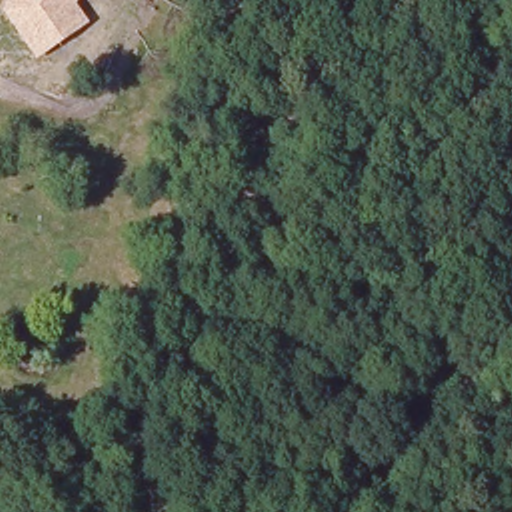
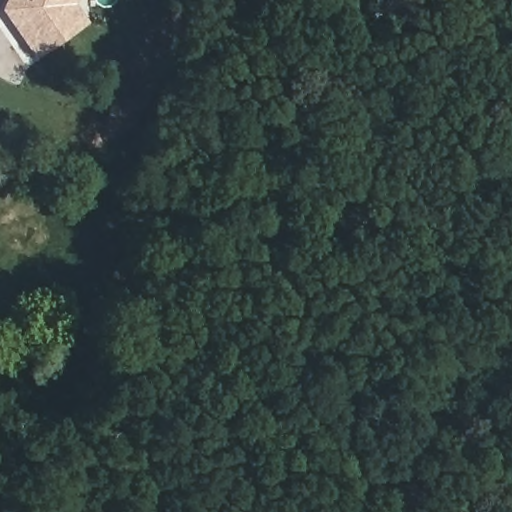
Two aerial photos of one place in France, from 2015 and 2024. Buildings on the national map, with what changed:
unchanged [(75,5),(88,23),(37,57),(2,7),(5,0),(78,0),(75,5)]

